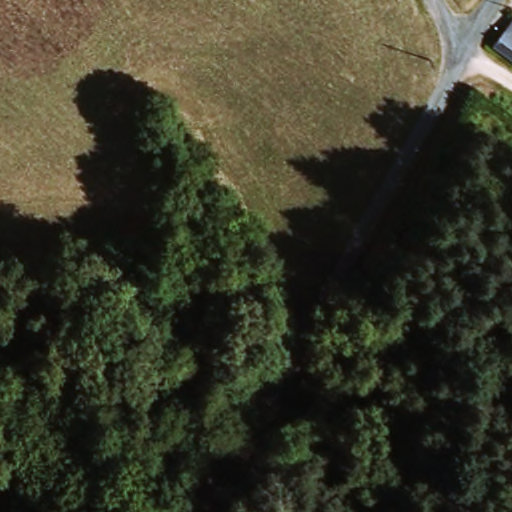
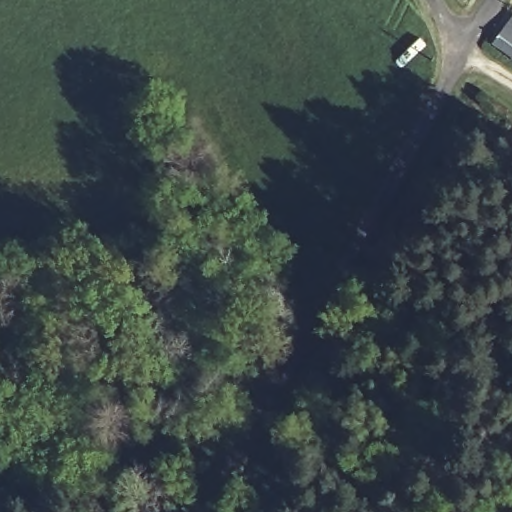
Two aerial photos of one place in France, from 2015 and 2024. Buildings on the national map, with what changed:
unchanged [(512,21),(512,62),(491,47),(512,21)]

